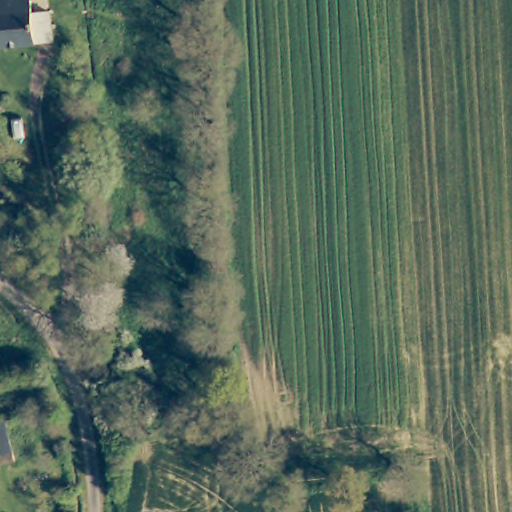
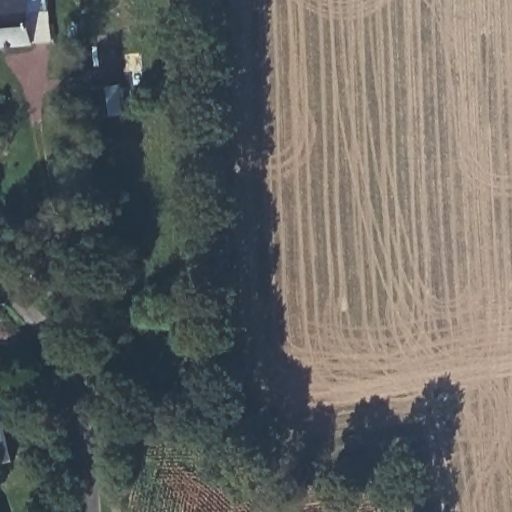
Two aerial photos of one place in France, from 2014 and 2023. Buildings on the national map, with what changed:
unchanged [(0,52),(0,0),(30,0),(35,47),(0,52)]
unchanged [(3,423),(16,463),(4,466),(0,467),(0,424),(3,423)]

